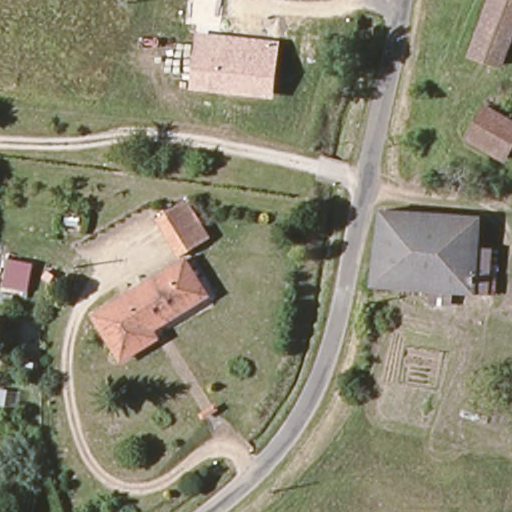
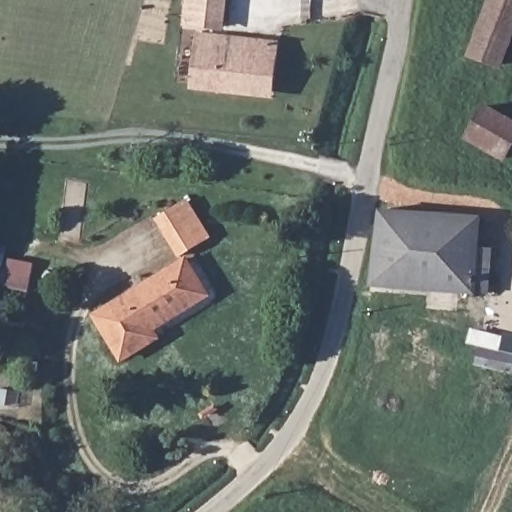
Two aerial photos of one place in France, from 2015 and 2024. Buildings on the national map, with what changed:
new [(186,0),(227,0),(224,30),(183,26),(186,0)]
unchanged [(472,54),(492,0),(512,0),(512,37),(502,66),(472,54)]
unchanged [(274,97),(190,90),(195,34),(280,42),(274,97)]
unchanged [(486,108),(512,121),(512,147),(506,159),(469,140),(486,108)]
unchanged [(182,205),(204,242),(178,258),(158,229),(154,224),(162,219),(182,205)]
unchanged [(478,221),(477,253),(491,255),(488,298),(452,296),(450,307),(431,305),(431,294),(369,291),(381,214),(478,221)]
unchanged [(92,320),(126,298),(182,263),(205,301),(150,332),(155,341),(119,363),(106,343),(92,320)]

